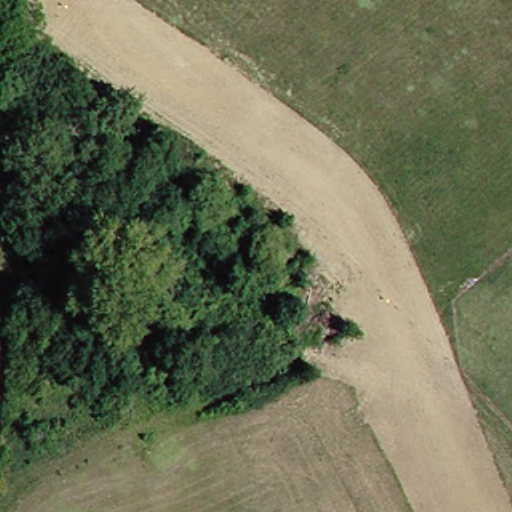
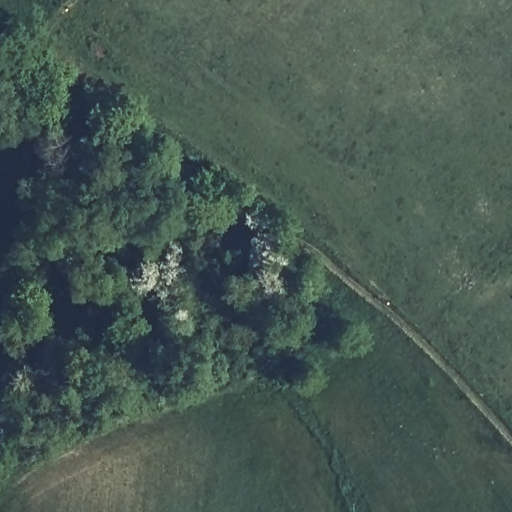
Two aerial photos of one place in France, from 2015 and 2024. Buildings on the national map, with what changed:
[]

